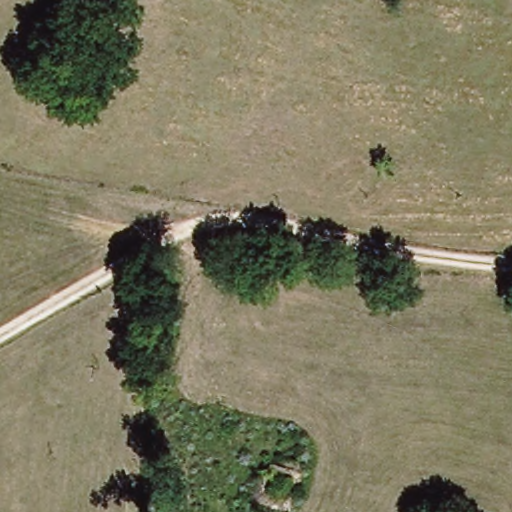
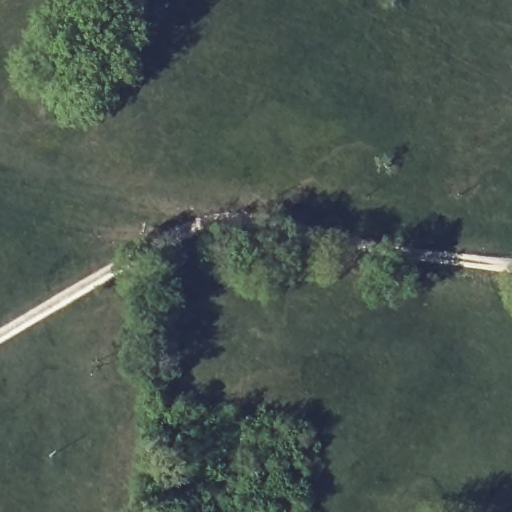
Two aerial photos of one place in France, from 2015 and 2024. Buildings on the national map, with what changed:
[]

